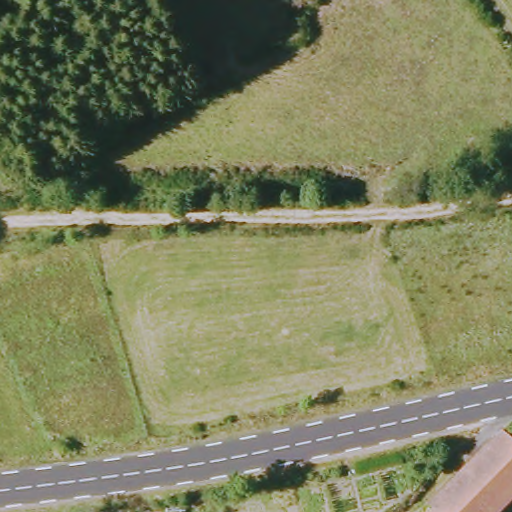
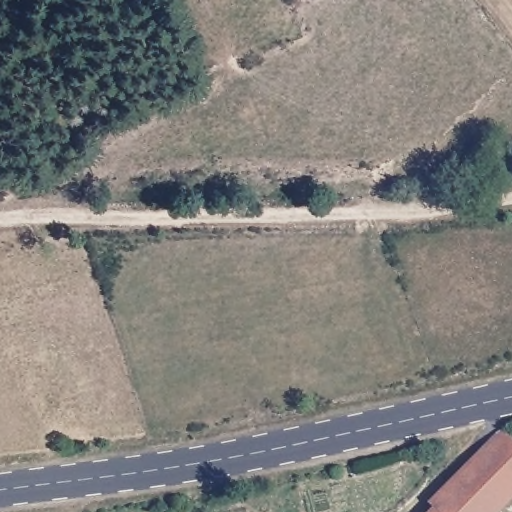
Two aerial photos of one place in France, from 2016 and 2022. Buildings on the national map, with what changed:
unchanged [(494,512),(442,512),(440,510),(434,505),(505,431),(512,436),(512,494),(494,512)]
unchanged [(442,512),(437,512),(440,510),(442,512)]

